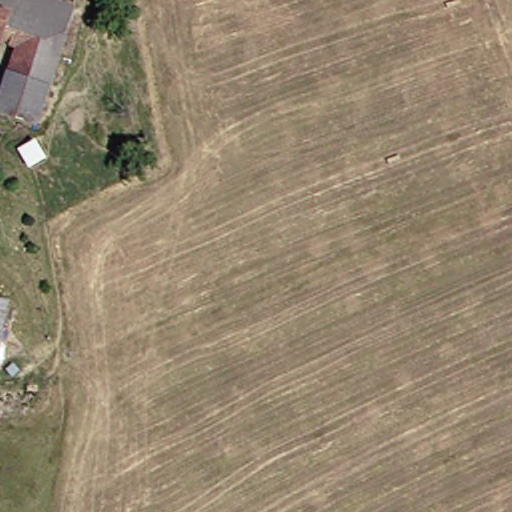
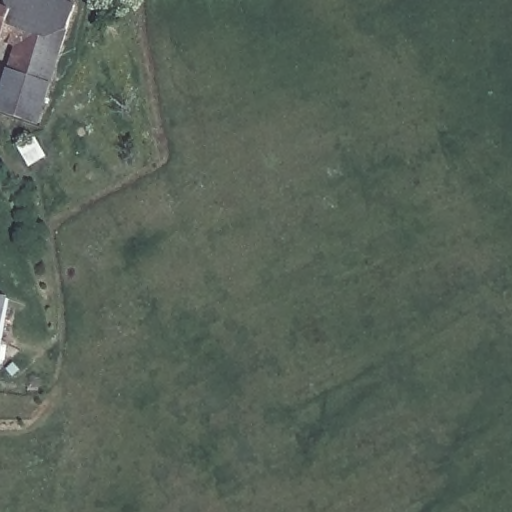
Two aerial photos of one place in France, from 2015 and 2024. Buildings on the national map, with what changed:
unchanged [(0,115),(27,46),(0,35),(0,0),(75,0),(79,1),(87,0),(93,0),(49,116),(42,131),(0,115)]
unchanged [(0,294),(22,298),(7,373),(0,371),(0,294)]

